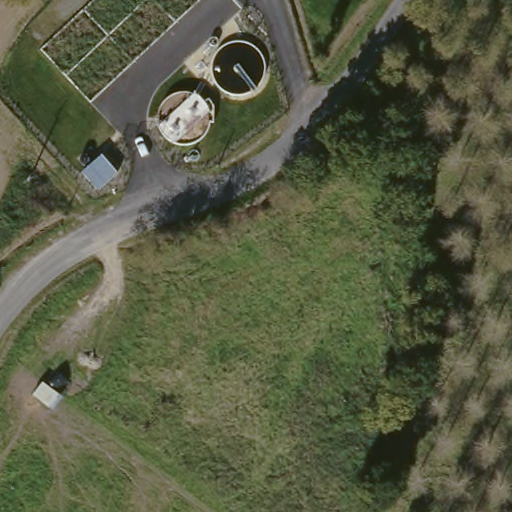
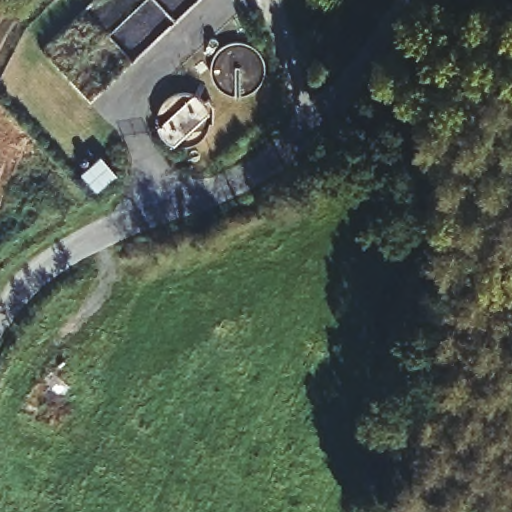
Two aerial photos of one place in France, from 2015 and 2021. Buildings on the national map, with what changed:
unchanged [(97,190),(81,173),(102,155),(117,174),(97,190)]

